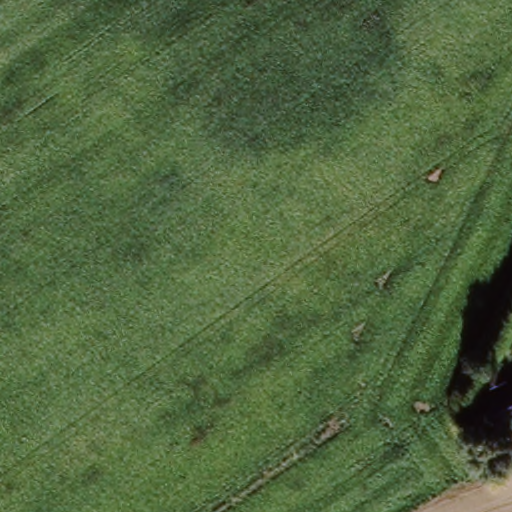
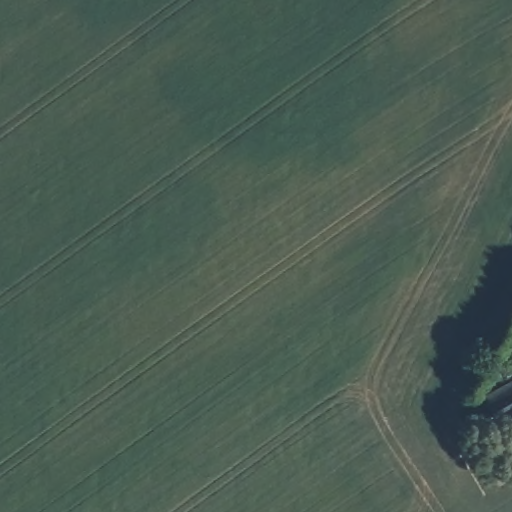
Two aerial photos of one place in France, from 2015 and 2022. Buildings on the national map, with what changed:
unchanged [(512,418),(500,425),(487,403),(512,388),(512,418)]

